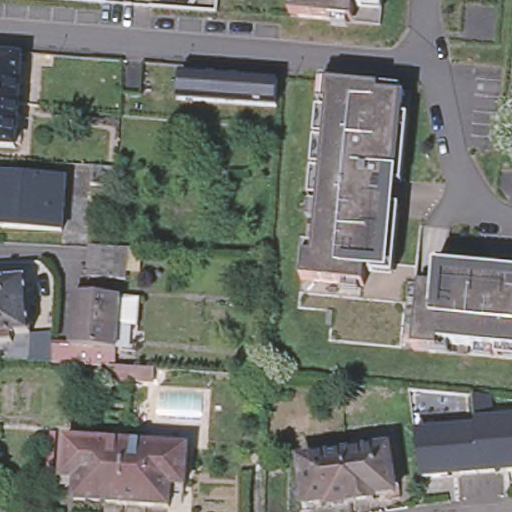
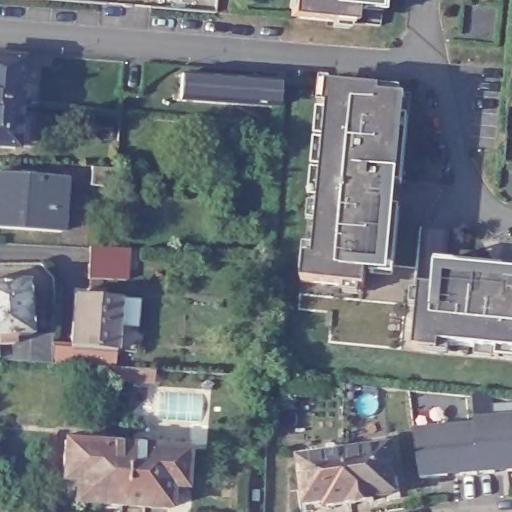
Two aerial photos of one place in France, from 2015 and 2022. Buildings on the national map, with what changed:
unchanged [(380,27),(290,18),(292,0),(383,0),(380,27)]
unchanged [(0,60),(22,62),(18,107),(0,105),(0,60)]
unchanged [(274,107),(175,99),(177,73),(220,77),(220,79),(245,80),(245,79),(275,82),(274,107)]
unchanged [(327,315),(299,312),(320,86),(411,94),(400,217),(399,217),(394,268),(417,269),(416,289),(443,291),(445,264),(512,271),(512,363),(330,345),(331,327),(326,327),(327,315)]
unchanged [(14,151),(0,150),(0,105),(18,107),(14,151)]
unchanged [(91,187),(92,168),(124,170),(122,189),(91,187)]
unchanged [(62,234),(0,230),(0,177),(66,182),(62,234)]
unchanged [(140,252),(139,272),(125,271),(125,281),(90,280),(91,249),(140,252)]
unchanged [(0,363),(0,286),(25,284),(30,338),(51,337),(52,363),(52,366),(62,367),(61,379),(17,375),(19,364),(0,363)]
unchanged [(74,296),(119,299),(133,300),(131,325),(117,324),(114,353),(70,349),(74,296)]
unchanged [(129,385),(107,384),(108,370),(130,371),(150,372),(150,387),(129,385)]
unchanged [(413,432),(472,425),(470,393),(489,395),(491,423),(512,420),(512,470),(419,479),(413,432)]
unchanged [(125,505),(78,502),(79,480),(65,479),(68,441),(130,445),(125,505)]
unchanged [(189,449),(187,486),(172,485),(170,508),(125,505),(130,445),(189,449)]
unchanged [(387,453),(394,495),(372,498),(373,502),(350,506),(343,459),(387,453)]
unchanged [(350,506),(327,509),(326,505),(305,508),(300,466),(343,459),(350,506)]

